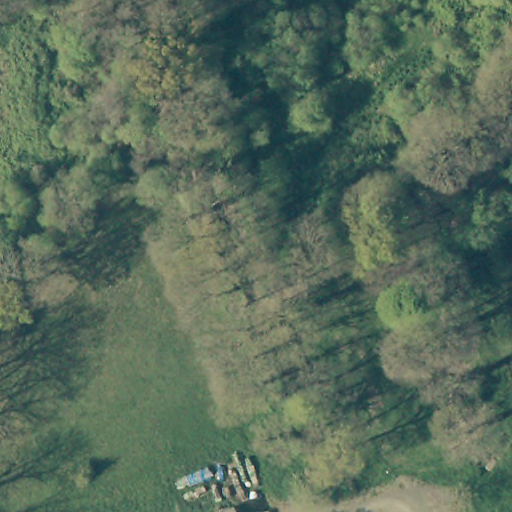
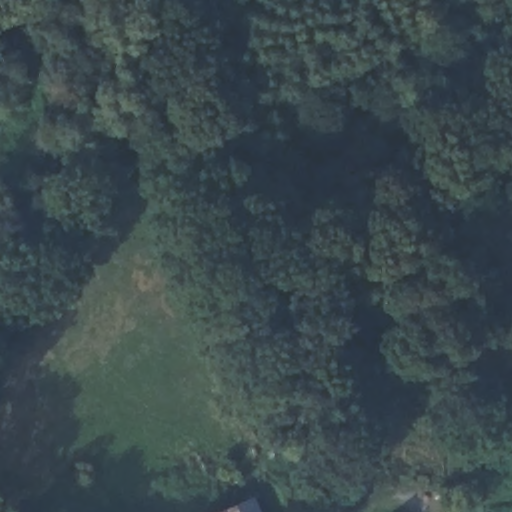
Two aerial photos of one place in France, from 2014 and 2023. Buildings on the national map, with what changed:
unchanged [(198,512),(233,495),(241,512),(198,512)]

